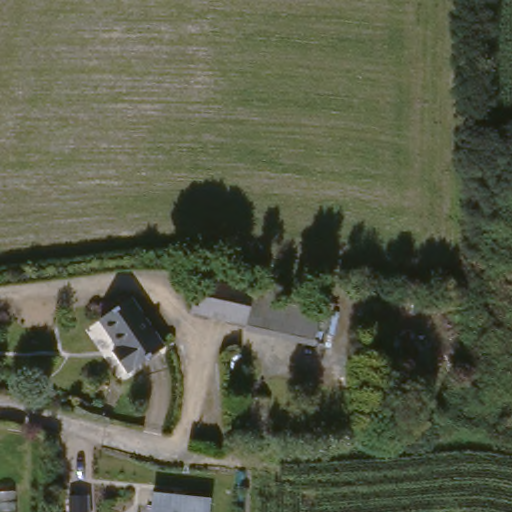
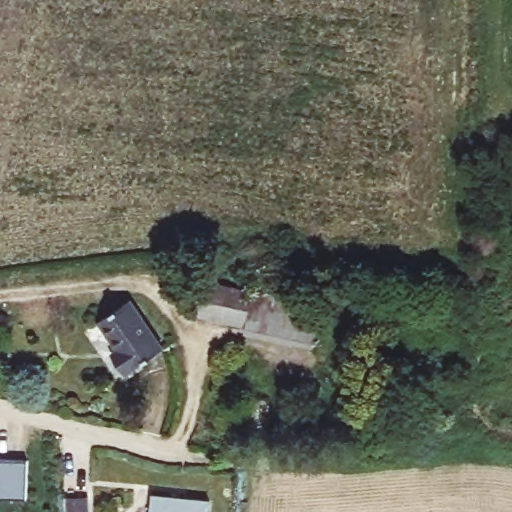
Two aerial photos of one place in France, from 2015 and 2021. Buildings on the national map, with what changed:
unchanged [(198,329),(187,326),(195,288),(207,291),(320,318),(311,356),(198,329)]
unchanged [(111,355),(93,324),(126,300),(164,356),(121,386),(104,360),(111,355)]
new [(26,498),(0,498),(0,458),(26,459),(26,498)]
unchanged [(213,494),(211,512),(153,512),(156,489),(213,494)]

